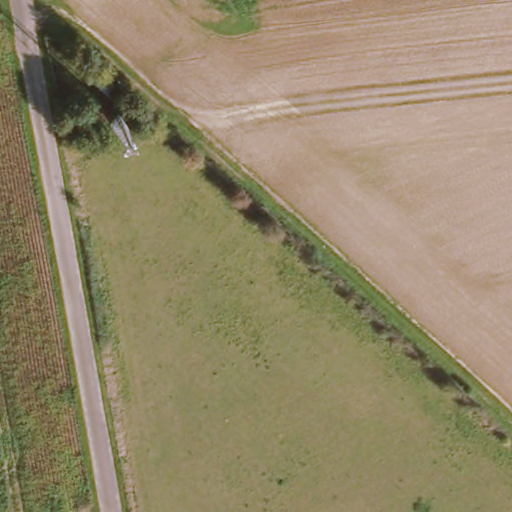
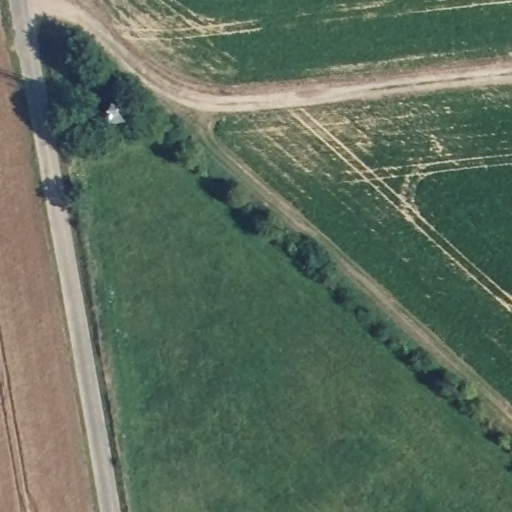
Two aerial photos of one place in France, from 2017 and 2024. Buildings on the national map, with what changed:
unchanged [(117,87),(110,99),(87,81),(97,70),(117,87)]

